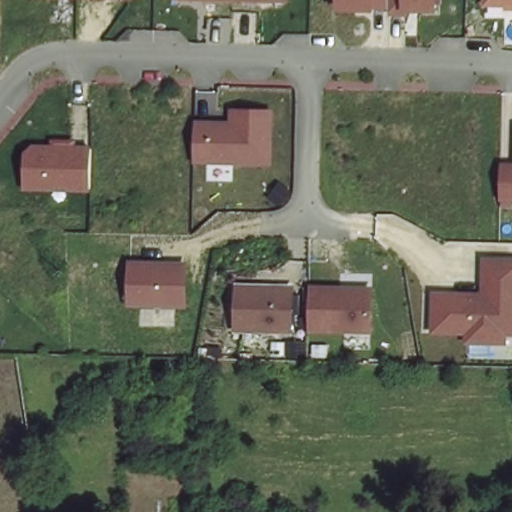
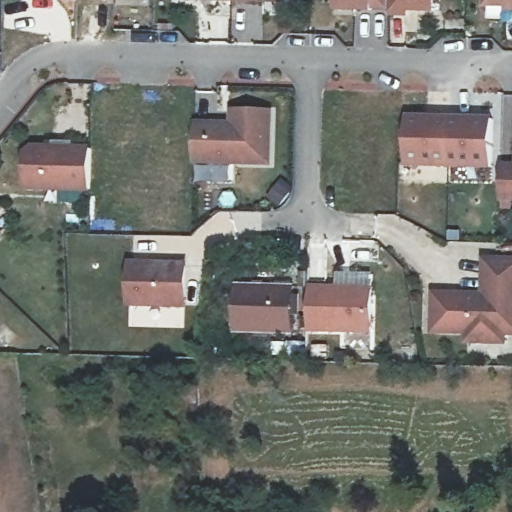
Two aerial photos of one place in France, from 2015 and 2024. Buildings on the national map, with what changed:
unchanged [(236,1),(216,0),(236,0),(236,1)]
unchanged [(286,2),(236,1),(236,0),(286,0),(286,2)]
unchanged [(390,9),(372,11),(336,11),(336,0),(390,0),(390,9)]
unchanged [(437,12),(410,11),(409,16),(390,16),(390,0),(437,0),(437,12)]
unchanged [(506,7),(482,6),(482,0),(512,0),(512,11),(507,11),(506,7)]
unchanged [(273,111),(273,165),(196,165),(196,121),(230,122),(229,110),(273,111)]
new [(492,169),(406,167),(407,116),(493,117),(492,169)]
unchanged [(31,145),(50,146),(50,140),(75,141),(74,146),(90,147),(87,194),(22,191),(24,152),(31,145)]
unchanged [(503,163),(512,162),(512,202),(502,202),(503,163)]
unchanged [(506,330),(504,341),(467,338),(468,332),(435,331),(436,292),(473,292),(474,300),(485,299),(486,257),(512,258),(512,330),(506,330)]
unchanged [(190,262),(190,307),(128,306),(130,261),(190,262)]
unchanged [(293,286),(291,332),(232,331),(234,282),(293,286)]
unchanged [(371,287),(369,332),(307,330),(309,285),(371,287)]

